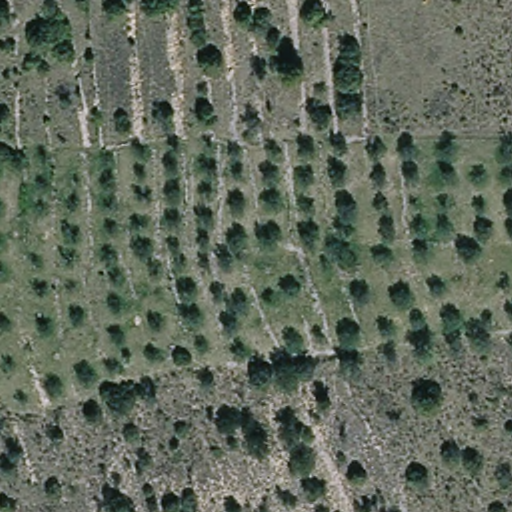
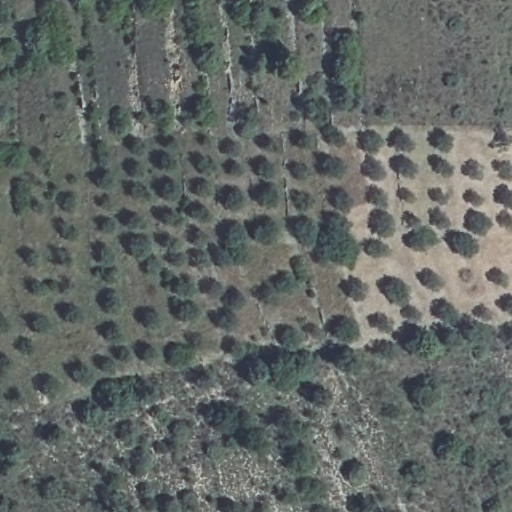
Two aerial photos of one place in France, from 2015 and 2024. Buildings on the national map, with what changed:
[]

